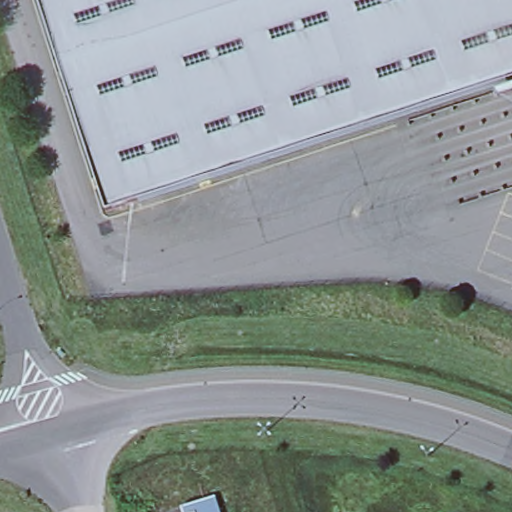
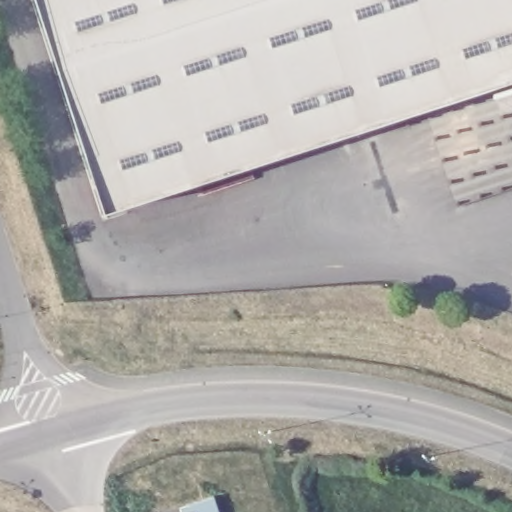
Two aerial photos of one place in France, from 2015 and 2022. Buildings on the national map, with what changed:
unchanged [(41,0),(512,0),(512,74),(107,205),(41,0)]
unchanged [(210,501),(213,512),(176,512),(210,501)]

